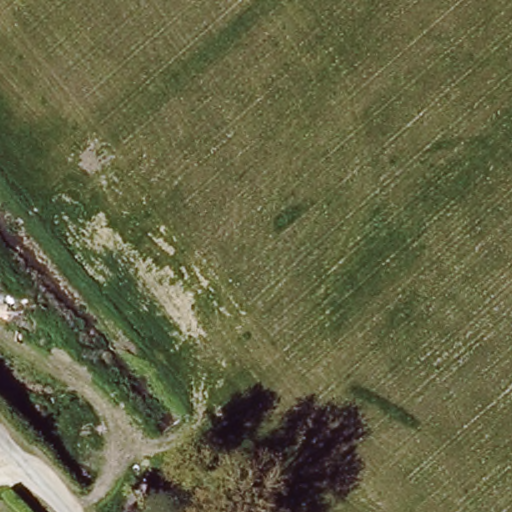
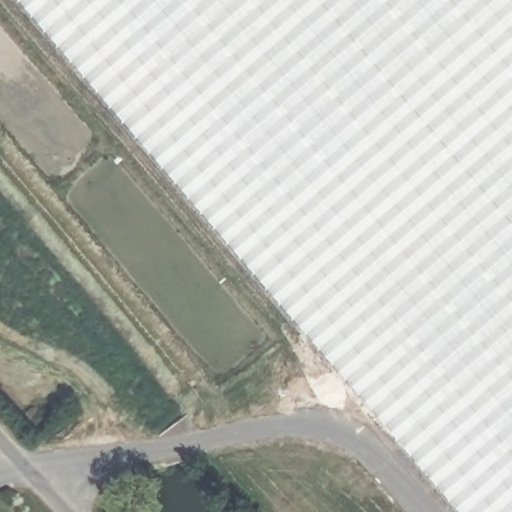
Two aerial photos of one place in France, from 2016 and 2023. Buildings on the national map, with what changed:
new [(512,0),(512,512),(461,512),(20,0),(512,0)]

